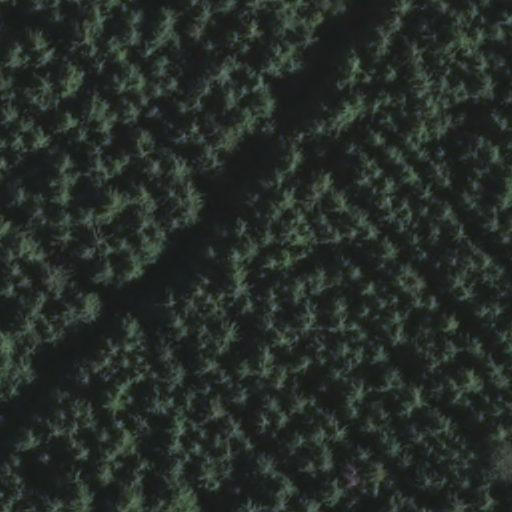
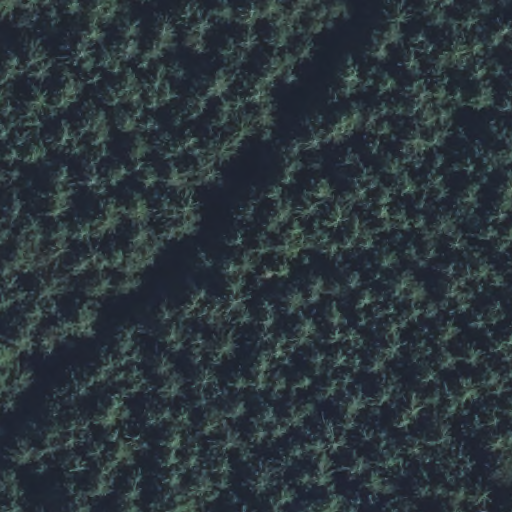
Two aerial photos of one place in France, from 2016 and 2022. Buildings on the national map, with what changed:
[]

